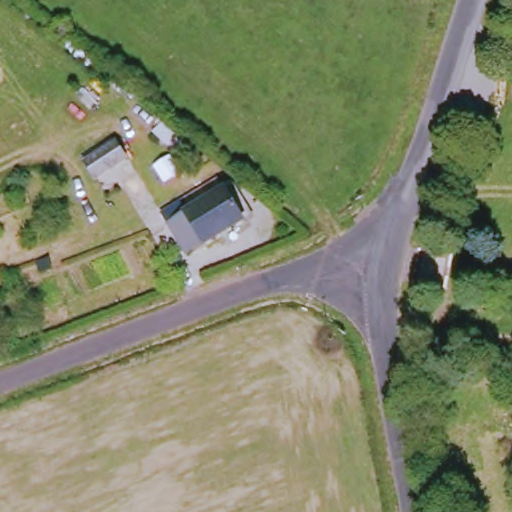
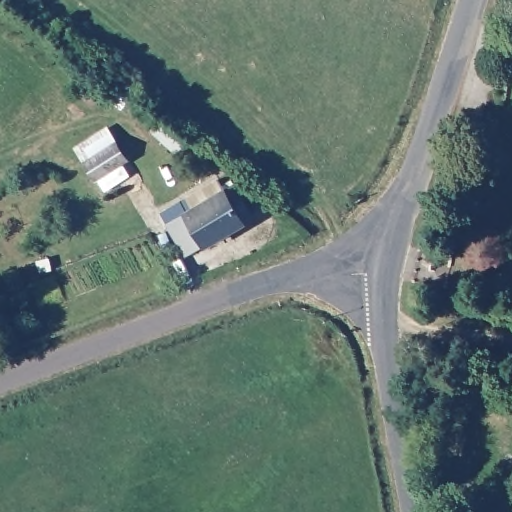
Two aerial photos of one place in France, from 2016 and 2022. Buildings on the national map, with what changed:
unchanged [(166,125),(186,142),(176,153),(157,137),(166,125)]
unchanged [(115,150),(128,166),(98,188),(87,174),(115,150)]
unchanged [(167,221),(187,211),(229,189),(248,219),(203,244),(184,255),(167,221)]
unchanged [(60,287),(52,289),(48,281),(57,278),(60,287)]

